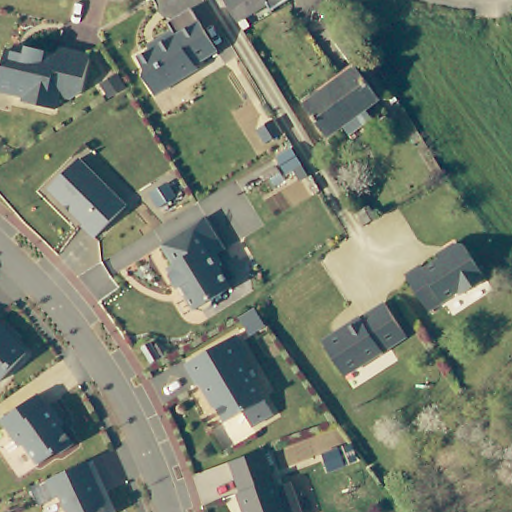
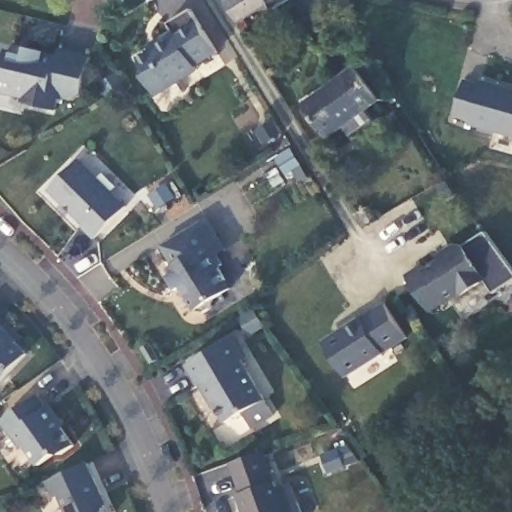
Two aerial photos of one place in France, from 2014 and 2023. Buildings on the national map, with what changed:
unchanged [(242,18),(231,0),(271,0),(242,18)]
unchanged [(191,66),(194,70),(151,96),(141,79),(142,72),(134,59),(154,47),(151,43),(169,32),(164,24),(187,9),(213,52),(191,66)]
unchanged [(52,111),(21,103),(22,98),(0,93),(0,66),(1,66),(4,51),(23,56),(25,48),(43,52),(42,55),(54,57),(56,50),(88,58),(79,94),(68,100),(55,97),(52,111)]
unchanged [(360,69),(381,105),(327,137),(306,101),(360,69)]
new [(469,124),(470,119),(455,115),(464,80),(480,83),(481,80),(512,88),(512,137),(469,124)]
unchanged [(74,231),(76,229),(41,192),(72,164),(118,212),(85,243),(74,231)]
unchanged [(363,211),(370,223),(361,227),(354,215),(363,211)]
unchanged [(216,241),(207,246),(219,266),(215,268),(217,273),(228,291),(211,301),(209,309),(200,314),(192,312),(183,298),(184,297),(179,289),(175,292),(166,277),(168,276),(165,271),(171,267),(160,247),(204,220),(216,241)]
unchanged [(465,240),(488,274),(465,289),(462,285),(430,305),(408,271),(424,261),(426,265),(442,255),(439,250),(458,238),(465,240)]
unchanged [(347,372),(326,339),(347,326),(345,323),(362,312),(363,314),(387,299),(409,332),(347,372)]
unchanged [(5,337),(25,356),(0,383),(0,329),(7,335),(5,337)]
unchanged [(252,425),(243,409),(226,419),(213,397),(211,399),(201,381),(199,382),(187,361),(236,333),(248,354),(242,358),(273,413),(252,425)]
unchanged [(160,360),(151,365),(142,349),(151,344),(160,360)]
unchanged [(45,409),(48,406),(58,421),(55,423),(72,447),(60,456),(54,455),(38,467),(24,449),(18,448),(0,423),(36,397),(45,409)]
unchanged [(241,495),(231,465),(259,455),(263,454),(283,512),(242,512),(237,497),(241,495)]
unchanged [(112,512),(73,512),(65,492),(59,495),(52,479),(65,473),(92,461),(98,476),(105,492),(103,493),(112,512)]

